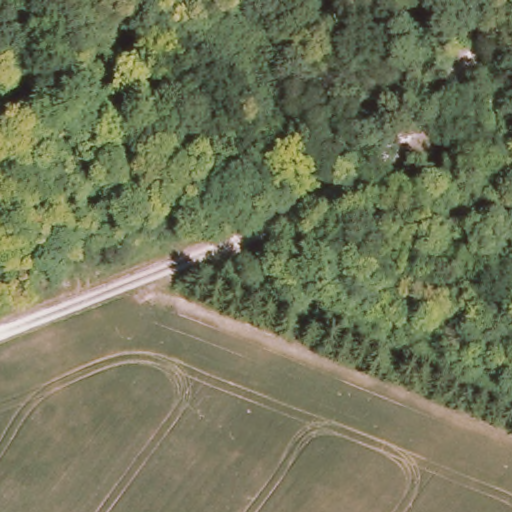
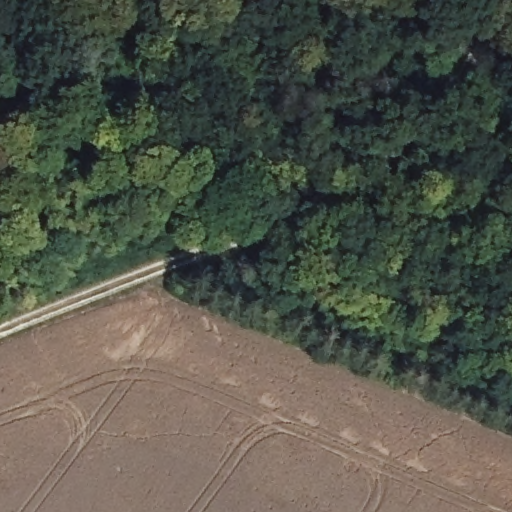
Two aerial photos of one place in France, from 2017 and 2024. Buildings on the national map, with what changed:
[]

